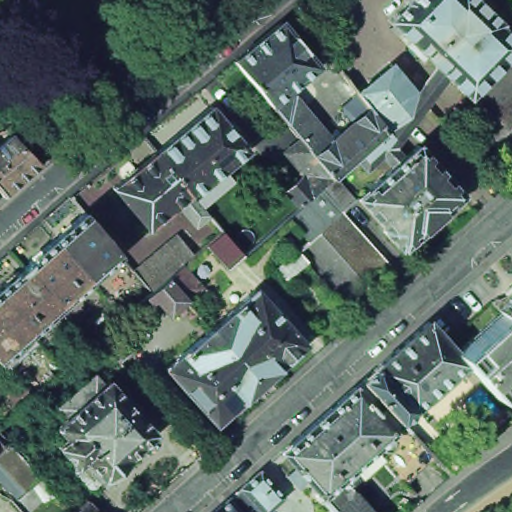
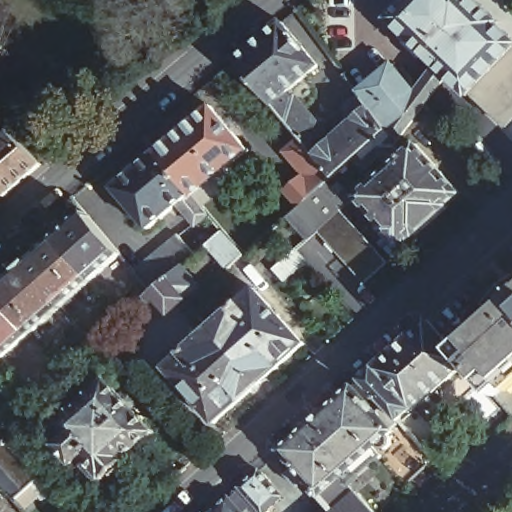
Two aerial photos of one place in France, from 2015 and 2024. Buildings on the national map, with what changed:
unchanged [(421,58),(406,43),(409,39),(389,19),(406,1),(406,0),(477,0),(500,22),(498,24),(512,38),(512,51),(471,93),(468,96),(448,76),(437,66),(424,54),(421,58)]
unchanged [(317,64),(318,65),(317,67),(316,68),(273,104),(271,105),(234,61),(281,21),(317,64)]
unchanged [(471,93),(512,51),(512,120),(506,126),(471,93)]
unchanged [(319,230),(307,240),(287,218),(301,206),(280,183),(299,167),(286,151),(301,139),(315,156),(333,141),(369,108),(358,92),(392,63),(417,92),(437,66),(448,76),(436,91),(453,107),(439,121),(426,105),(405,132),(397,143),(394,145),(396,147),(404,156),(417,144),(461,193),(448,205),(449,206),(416,235),(415,235),(402,247),(400,245),(399,247),(383,229),(384,228),(358,197),(392,166),(382,155),(366,170),(356,158),(334,178),(354,201),(342,211),(351,221),(379,252),(388,262),(365,282),(356,271),(328,241),(319,230)]
unchanged [(301,139),(279,112),(296,97),(312,117),(314,115),(329,134),(328,135),(333,141),(315,156),(301,139)]
unchanged [(196,225),(178,204),(148,229),(114,188),(156,152),(211,106),(248,150),(193,196),(208,214),(196,225)]
unchanged [(41,164),(5,195),(0,189),(0,145),(13,134),(41,164)]
unchanged [(232,217),(232,222),(223,230),(218,225),(208,214),(218,206),(223,206),(232,217)]
unchanged [(85,213),(86,212),(121,254),(120,255),(91,281),(54,240),(85,213)]
unchanged [(223,231),(244,254),(229,268),(208,244),(223,231)]
unchanged [(168,310),(152,292),(133,271),(178,234),(196,255),(191,259),(182,266),(197,283),(196,288),(184,299),(171,311),(168,310)]
unchanged [(54,240),(91,281),(60,307),(24,266),(54,240)]
unchanged [(296,250),(307,262),(284,281),(274,270),(296,250)]
unchanged [(24,266),(60,307),(30,334),(0,300),(0,288),(24,266)]
unchanged [(255,288),(304,344),(259,383),(210,328),(255,288)]
unchanged [(467,363),(456,351),(501,311),(491,300),(499,298),(506,294),(512,289),(512,415),(496,396),(467,363)]
unchanged [(30,334),(0,361),(0,300),(30,334)]
unchanged [(333,508),(321,496),(321,495),(319,494),(318,496),(314,493),(316,491),(306,479),(297,487),(292,481),(286,474),(287,473),(295,466),(281,451),(354,386),(354,387),(363,380),(362,380),(374,369),(374,368),(428,320),(456,351),(467,363),(414,409),(445,441),(432,454),(434,457),(408,483),(383,456),(359,477),(351,485),(358,492),(375,512),(331,512),(330,510),(333,508)]
unchanged [(113,326),(133,349),(119,361),(99,338),(113,326)]
unchanged [(210,328),(259,383),(215,423),(166,368),(210,328)]
unchanged [(9,396),(23,385),(14,376),(24,366),(43,387),(32,396),(19,407),(9,396)]
unchanged [(79,474),(79,469),(63,450),(71,443),(61,431),(71,422),(63,412),(99,379),(108,388),(113,384),(159,437),(131,463),(133,465),(110,485),(109,483),(108,484),(106,481),(98,489),(93,489),(79,474)]
unchanged [(25,492),(0,464),(0,424),(15,410),(23,420),(23,428),(6,441),(40,478),(25,492)]
unchanged [(259,470),(283,497),(266,512),(255,512),(249,505),(242,512),(213,512),(229,497),(236,491),(259,470)]
unchanged [(88,504),(95,512),(77,512),(84,505),(88,504)]

